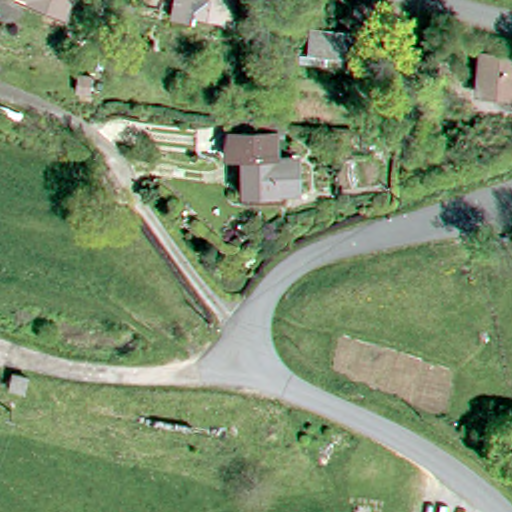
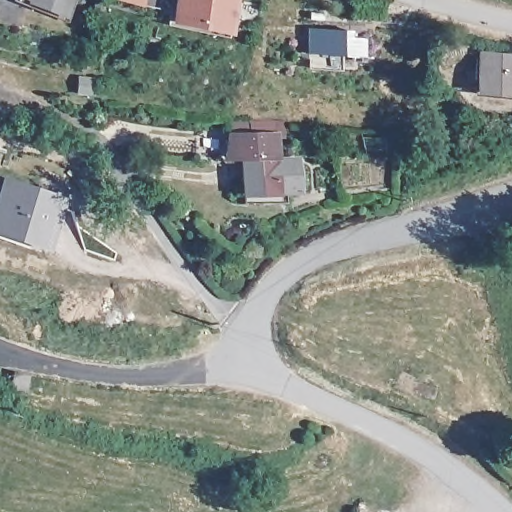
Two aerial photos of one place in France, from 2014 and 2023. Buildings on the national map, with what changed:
unchanged [(65,15),(30,0),(71,0),(65,15)]
new [(196,10),(233,17),(230,35),(170,22),(174,0),(198,0),(196,10)]
unchanged [(196,10),(198,0),(237,0),(233,17),(196,10)]
unchanged [(355,12),(355,0),(374,0),(382,1),(380,15),(355,12)]
unchanged [(351,30),(350,37),(363,37),(362,58),(309,55),(310,27),(351,30)]
unchanged [(512,83),(475,79),(479,47),(512,50),(512,83)]
unchanged [(247,153),(230,153),(235,144),(235,131),(255,132),(256,116),(290,116),(290,132),(282,132),(285,190),(264,191),(249,191),(249,185),(247,153)]
new [(66,197),(47,251),(0,236),(0,182),(2,175),(66,197)]
unchanged [(14,375),(30,378),(29,383),(27,393),(10,389),(12,383),(14,375)]
unchanged [(367,510),(367,512),(349,512),(350,507),(367,510)]

